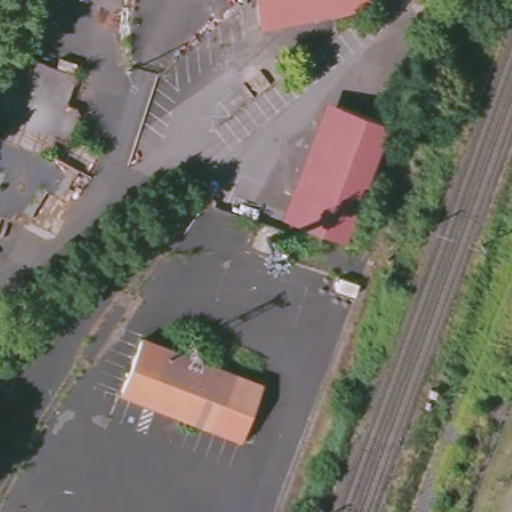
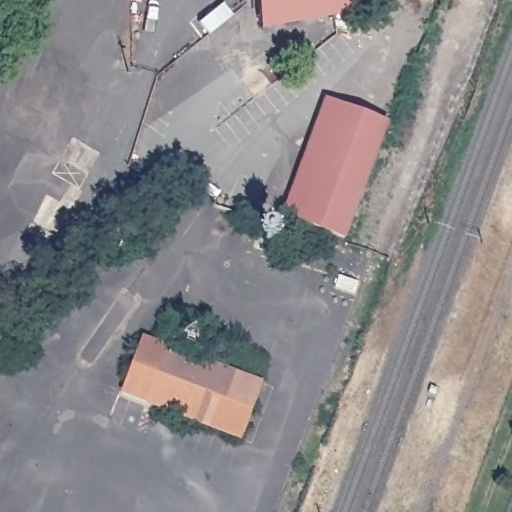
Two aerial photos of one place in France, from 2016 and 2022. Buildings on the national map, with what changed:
unchanged [(367,5),(259,24),(254,0),(369,0),(370,3),(367,5)]
unchanged [(333,104),(382,123),(337,242),(288,223),(333,104)]
unchanged [(262,382),(241,435),(122,391),(142,337),(167,346),(262,382)]

